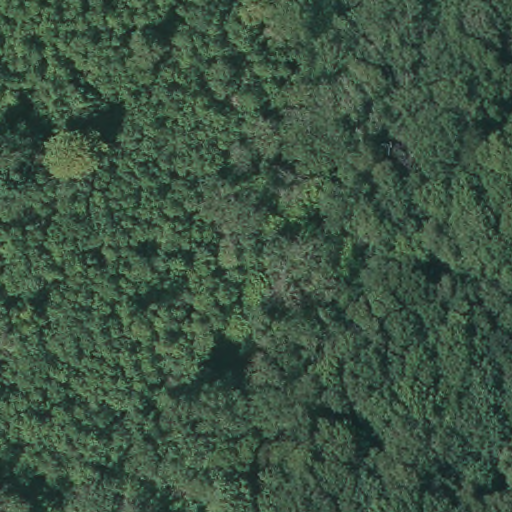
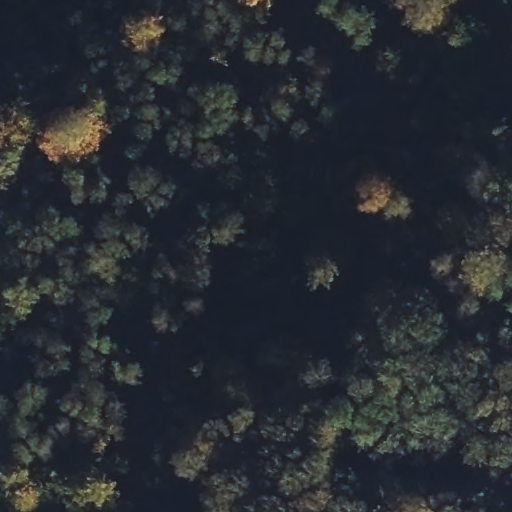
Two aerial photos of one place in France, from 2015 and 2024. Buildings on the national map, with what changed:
unchanged [(352,466),(331,491),(307,470),(327,445),(352,466)]

